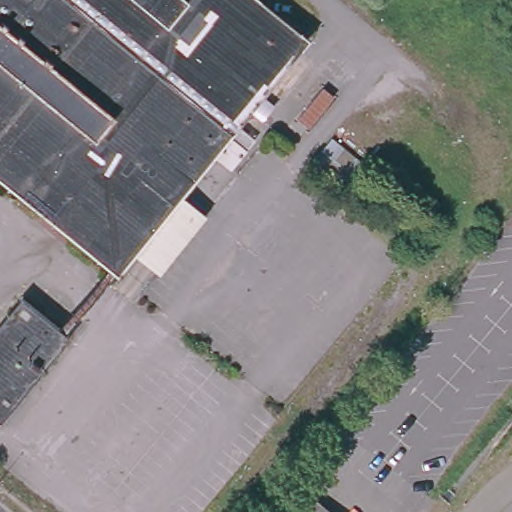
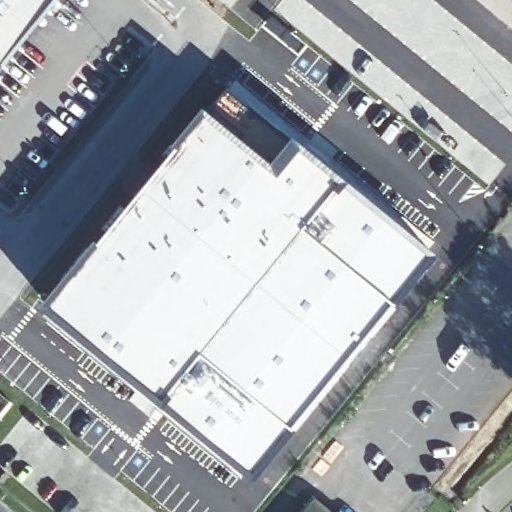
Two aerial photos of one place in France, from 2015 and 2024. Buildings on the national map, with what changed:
new [(0,0),(57,0),(0,71),(0,0)]
demolished [(180,195),(120,269),(116,274),(0,181),(0,0),(269,0),(310,34),(180,195)]
new [(297,139),(442,259),(402,306),(398,303),(295,430),(298,432),(256,481),(45,307),(97,241),(102,245),(180,149),(175,145),(206,108),(210,111),(228,89),(297,139)]
demolished [(67,326),(7,397),(0,407),(0,320),(23,292),(67,326)]
unchanged [(339,512),(299,512),(315,492),(339,512)]

